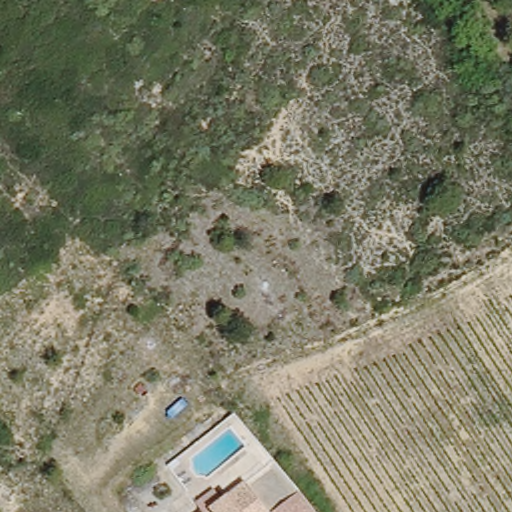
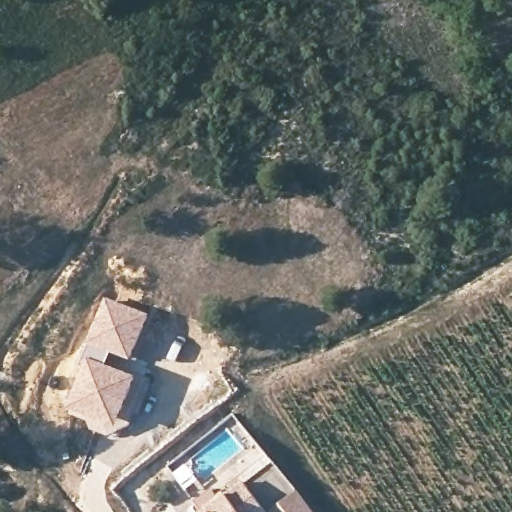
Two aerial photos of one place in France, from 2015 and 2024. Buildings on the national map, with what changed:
new [(125,410),(103,420),(72,408),(86,369),(80,367),(107,300),(148,317),(131,358),(114,351),(107,368),(136,380),(125,410)]
unchanged [(265,512),(209,512),(252,483),(265,512)]
unchanged [(317,512),(272,512),(300,489),(317,512)]

